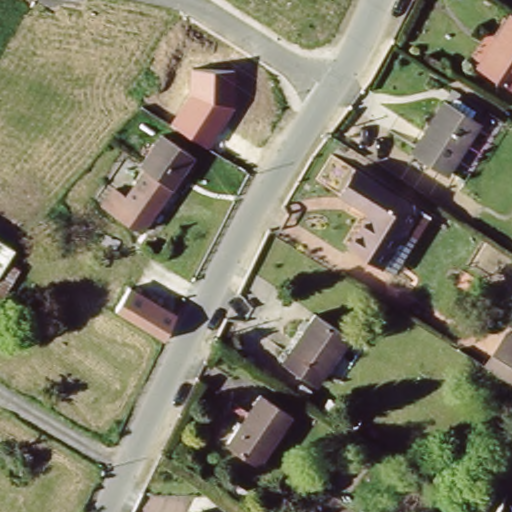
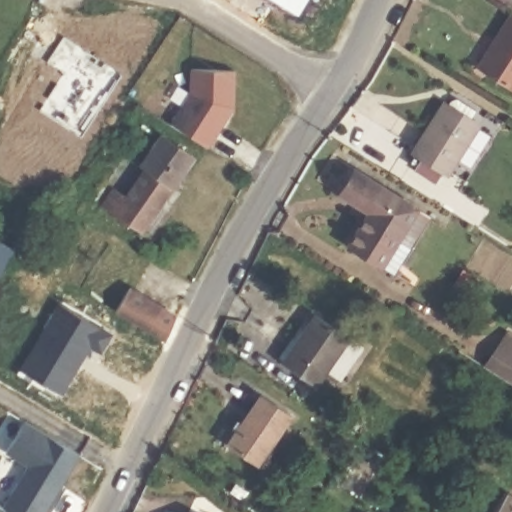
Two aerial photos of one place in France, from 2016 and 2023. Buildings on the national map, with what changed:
new [(306,19),(276,0),(316,0),(306,19)]
unchanged [(479,67),(495,38),(491,35),(504,12),(512,17),(512,86),(479,67)]
new [(118,68),(82,130),(40,107),(56,78),(40,68),(60,36),(118,68)]
unchanged [(190,92),(190,68),(235,70),(236,107),(208,149),(169,123),(190,92)]
unchanged [(476,118),(441,179),(406,159),(441,98),(476,118)]
unchanged [(135,162),(145,169),(169,139),(198,159),(175,189),(173,187),(138,232),(118,216),(103,205),(135,162)]
unchanged [(351,170),(423,211),(415,224),(407,237),(395,230),(376,263),(342,244),(361,211),(336,196),(345,181),(351,170)]
new [(0,239),(17,250),(0,278),(0,239)]
demolished [(0,255),(8,260),(0,273),(0,255)]
unchanged [(128,286),(174,313),(163,342),(113,315),(128,286)]
new [(111,334),(100,351),(85,342),(73,361),(78,365),(61,393),(20,369),(60,303),(111,334)]
unchanged [(348,336),(320,383),(283,361),(312,314),(348,336)]
unchanged [(485,365),(506,333),(512,337),(512,382),(485,365)]
unchanged [(290,420),(257,466),(229,447),(261,400),(290,420)]
new [(67,488),(52,512),(0,512),(0,504),(5,507),(29,466),(7,453),(26,420),(83,455),(65,486),(67,488)]
unchanged [(499,512),(512,491),(512,512),(499,512)]
unchanged [(209,512),(191,512),(195,505),(209,512)]

